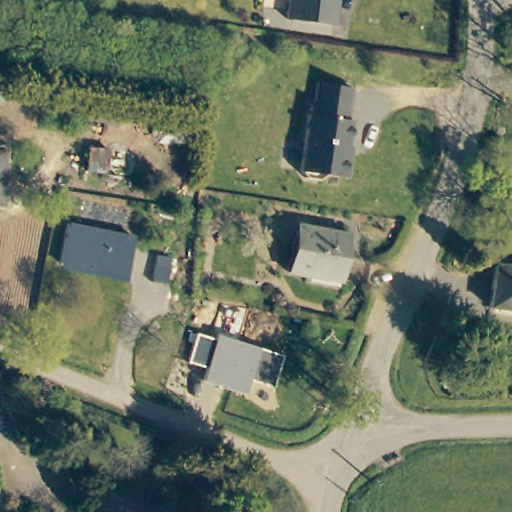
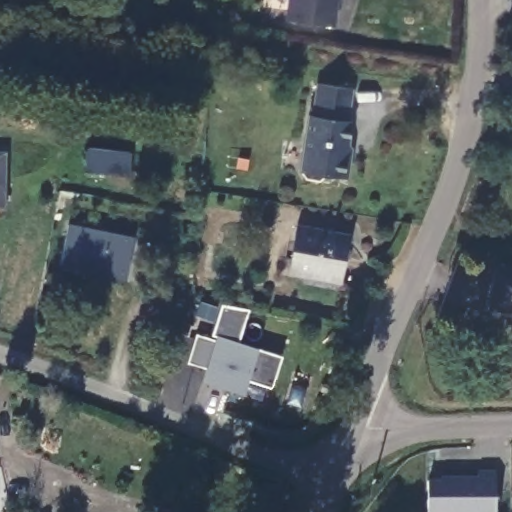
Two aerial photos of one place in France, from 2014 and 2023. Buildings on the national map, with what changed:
unchanged [(341,4),(338,25),(289,17),(291,0),(334,0),(341,4)]
unchanged [(305,183),(299,176),(309,120),(313,121),(318,89),(354,94),(348,126),(352,127),(346,159),(351,160),(347,182),(325,179),(318,186),(305,183)]
unchanged [(6,208),(0,208),(0,153),(9,154),(6,208)]
unchanged [(133,204),(103,200),(105,183),(136,187),(133,204)]
unchanged [(338,278),(289,268),(299,222),(348,232),(338,278)]
unchanged [(71,225),(134,237),(125,282),(61,267),(71,225)]
unchanged [(167,287),(154,285),(159,262),(171,264),(167,287)]
unchanged [(492,268),(512,270),(512,311),(488,309),(492,268)]
unchanged [(196,335),(216,340),(218,335),(258,348),(280,357),(272,387),(248,380),(244,395),(202,382),(206,368),(188,363),(196,335)]
new [(453,488),(454,485),(478,484),(478,478),(495,478),(495,512),(428,512),(428,488),(453,488)]

